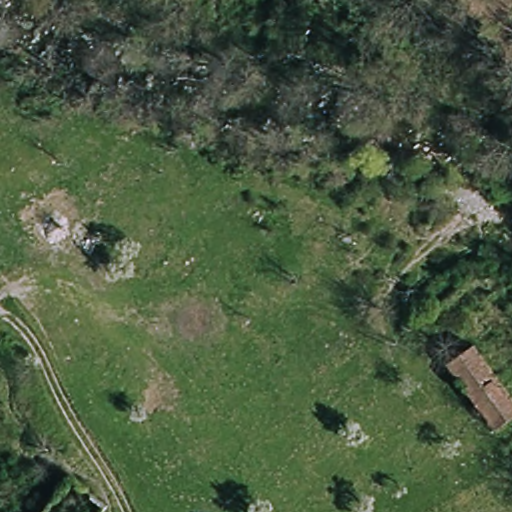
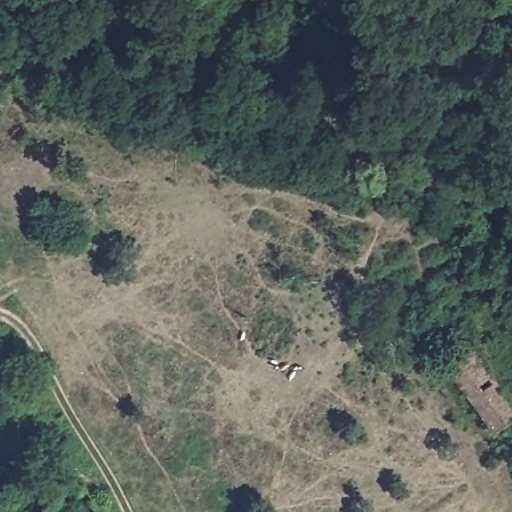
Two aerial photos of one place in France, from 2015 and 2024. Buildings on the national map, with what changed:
unchanged [(480,346),(489,359),(512,397),(512,419),(497,428),(465,381),(452,362),(480,346)]

